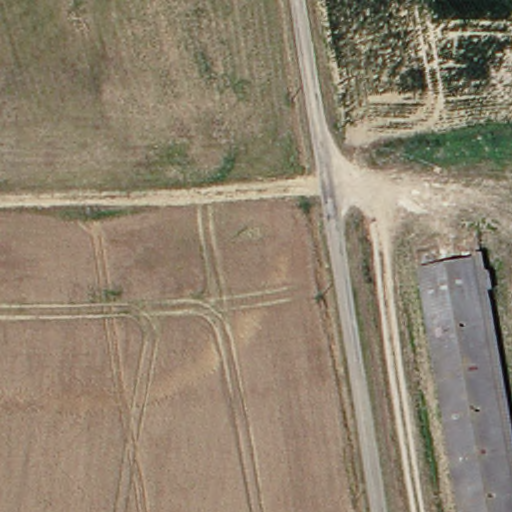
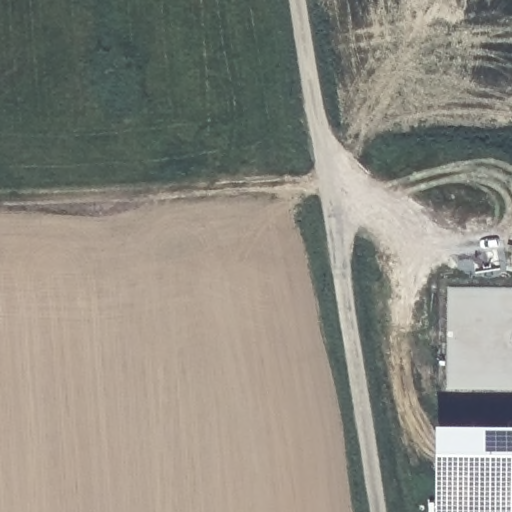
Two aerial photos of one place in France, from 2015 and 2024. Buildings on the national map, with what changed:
demolished [(512,395),(512,512),(462,512),(421,252),(486,239),(512,395)]
new [(512,420),(512,512),(436,512),(435,420),(512,420)]

